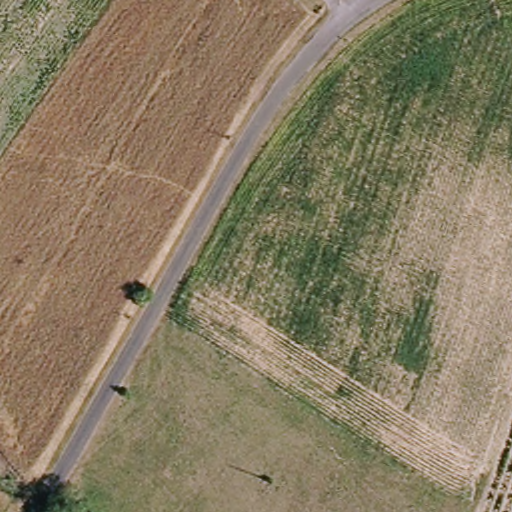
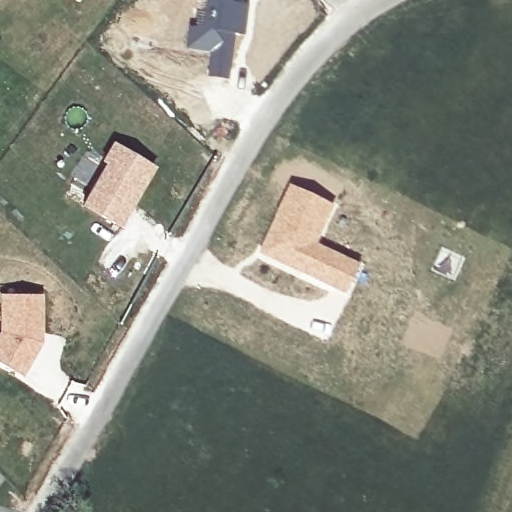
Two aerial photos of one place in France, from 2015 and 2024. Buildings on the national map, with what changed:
new [(189,25),(202,25),(206,0),(243,0),(242,4),(249,4),(244,36),(235,35),(229,80),(207,77),(210,54),(186,50),(189,25)]
new [(92,185),(97,187),(111,164),(102,159),(114,140),(152,164),(119,224),(82,203),(92,185)]
new [(289,184),(335,205),(317,244),(362,265),(347,296),(258,253),(289,184)]
new [(2,330),(2,293),(41,293),(41,341),(21,375),(0,363),(0,333),(2,330)]

